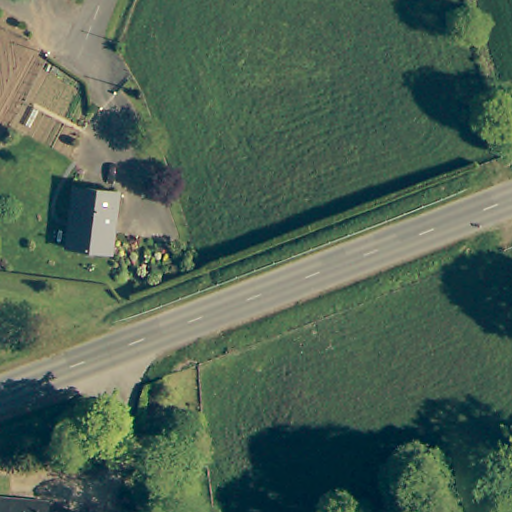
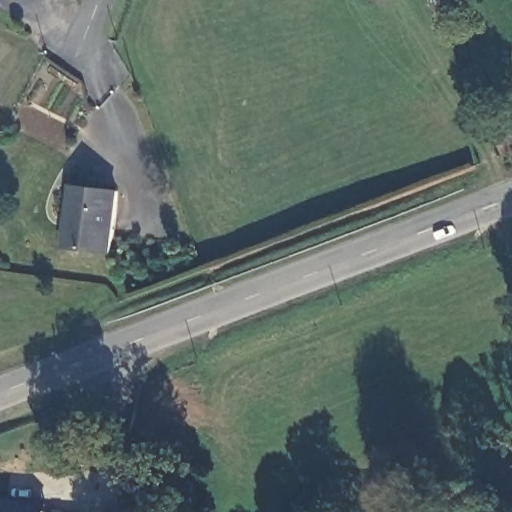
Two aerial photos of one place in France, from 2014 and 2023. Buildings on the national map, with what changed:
unchanged [(120,191),(114,250),(73,245),(79,185),(120,191)]
unchanged [(3,501),(43,504),(43,505),(77,506),(78,512),(0,512),(0,498),(3,498),(3,501)]

